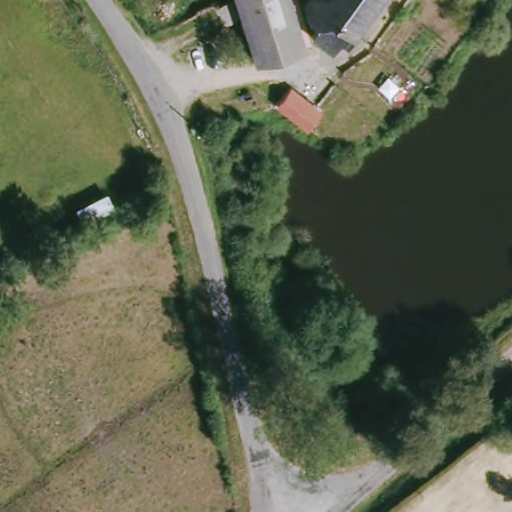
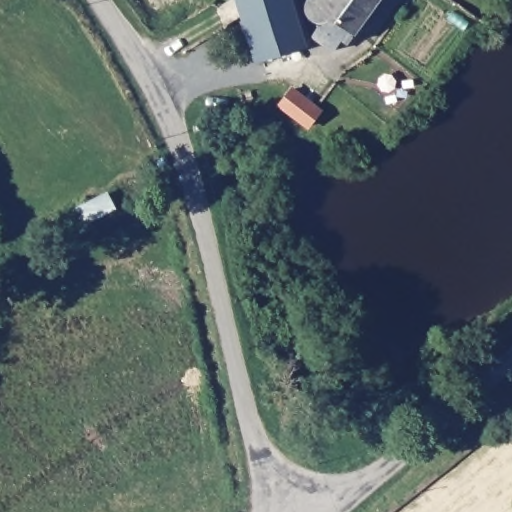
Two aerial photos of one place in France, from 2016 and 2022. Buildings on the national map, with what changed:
unchanged [(306,48),(261,63),(241,0),(292,0),(306,48)]
unchanged [(319,22),(312,19),(307,15),(306,8),(307,2),(309,0),(380,0),(351,43),(344,39),(335,52),(313,38),(324,23),(319,22)]
unchanged [(313,104),(317,107),(304,126),(276,106),(290,87),(313,104)]

